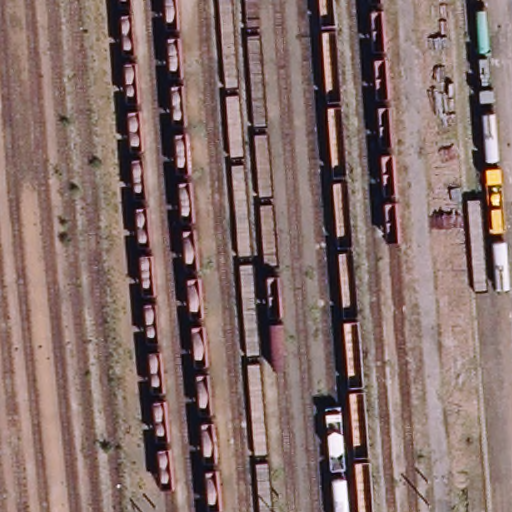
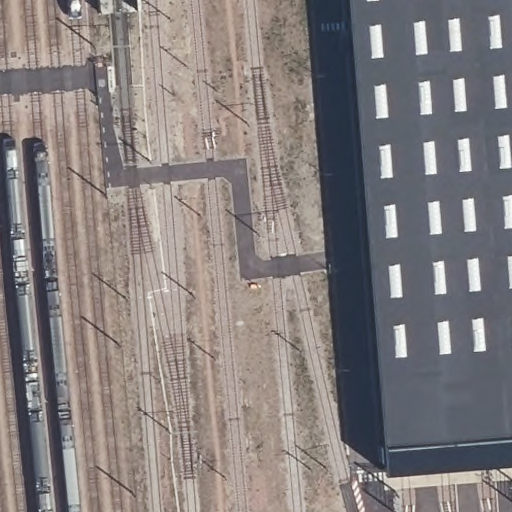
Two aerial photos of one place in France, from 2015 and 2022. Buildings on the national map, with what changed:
new [(383,471),(346,0),(512,0),(512,460),(383,471)]

